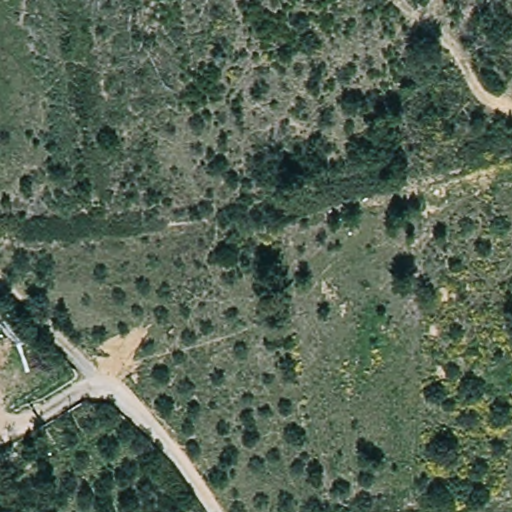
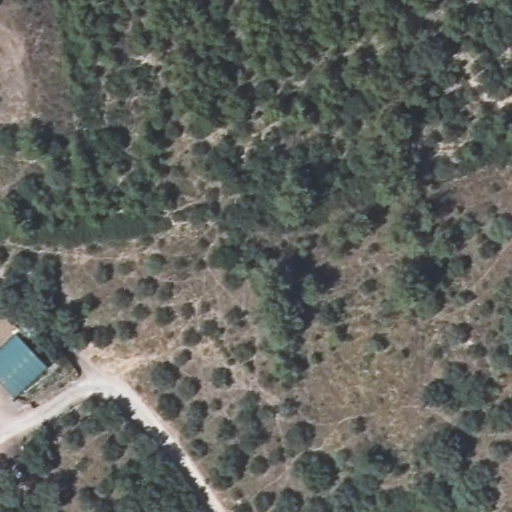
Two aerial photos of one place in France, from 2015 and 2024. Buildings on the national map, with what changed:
new [(0,382),(0,345),(16,331),(47,365),(13,396),(0,382)]

